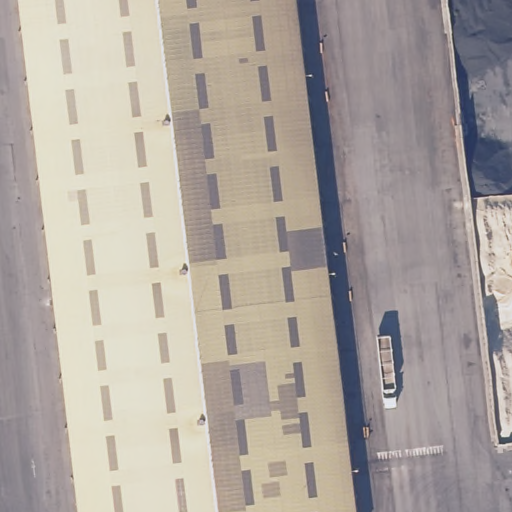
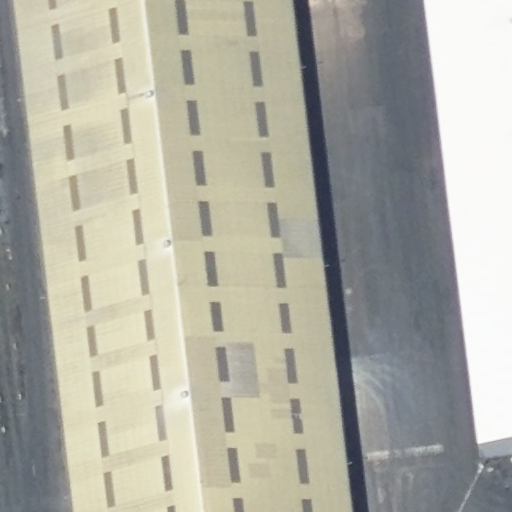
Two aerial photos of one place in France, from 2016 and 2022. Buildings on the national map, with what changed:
unchanged [(18,0),(294,0),(355,512),(79,512),(18,0)]
new [(490,459),(433,0),(512,0),(512,456),(490,459)]

